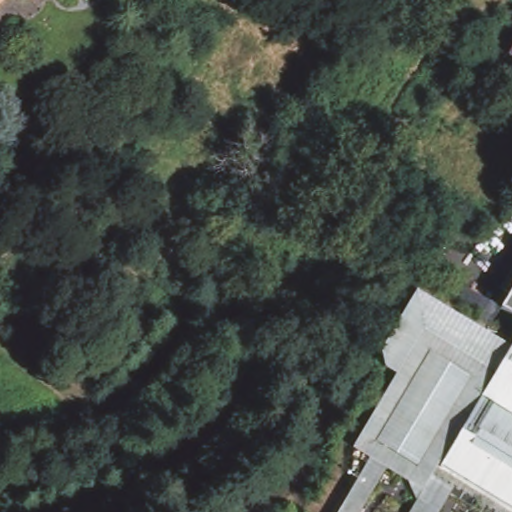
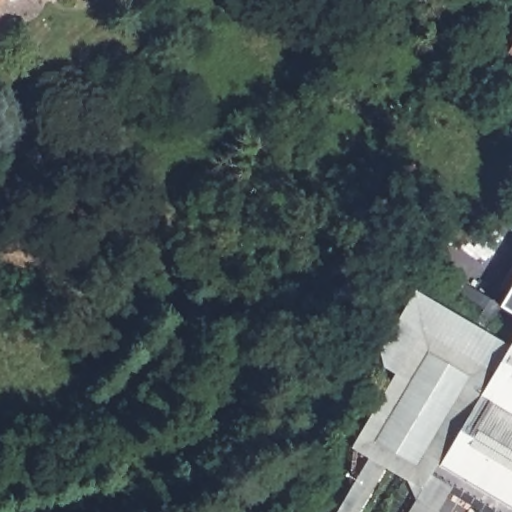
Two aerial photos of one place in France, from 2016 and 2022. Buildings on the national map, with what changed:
unchanged [(5,0),(0,6),(0,0),(5,0)]
unchanged [(415,501),(405,480),(384,468),(358,512),(334,512),(365,457),(350,448),(388,379),(378,351),(412,289),(512,348),(512,369),(455,465),(443,457),(430,477),(450,489),(437,512),(409,512),(415,501)]
unchanged [(512,368),(512,498),(455,465),(512,368)]

